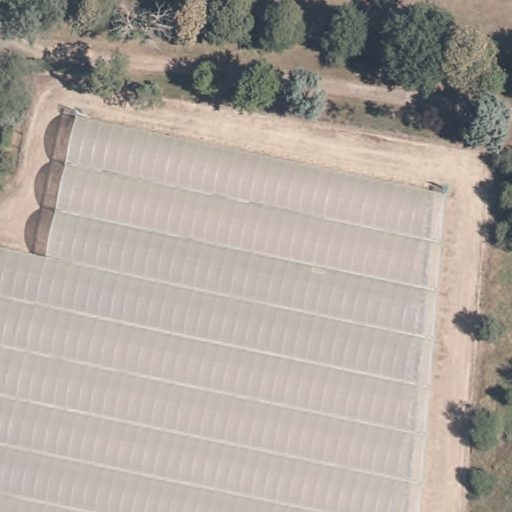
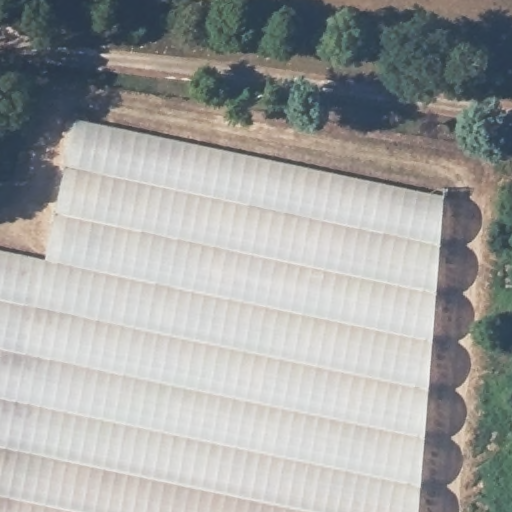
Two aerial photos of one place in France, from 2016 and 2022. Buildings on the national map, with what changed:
unchanged [(0,251),(46,261),(76,120),(444,196),(421,512),(0,512),(0,251)]

